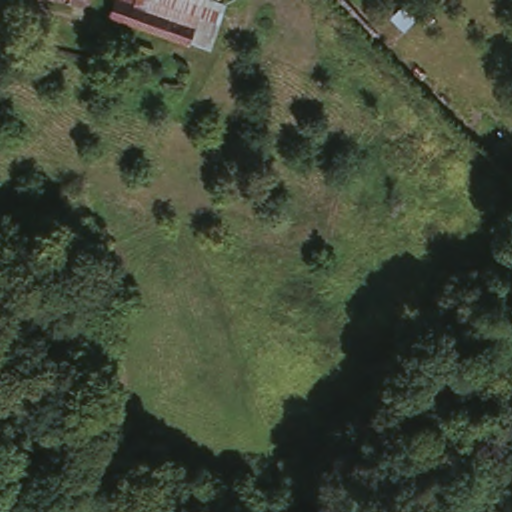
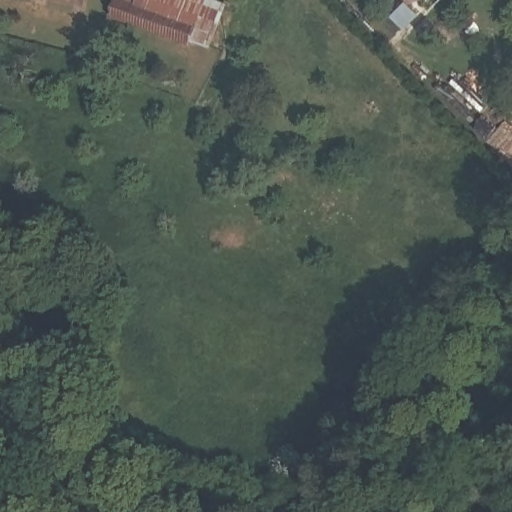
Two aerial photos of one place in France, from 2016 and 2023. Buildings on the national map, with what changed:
unchanged [(73,0),(81,0),(81,2),(73,0)]
unchanged [(228,0),(217,42),(193,35),(188,42),(110,15),(114,0),(117,0),(142,8),(144,0),(228,0)]

